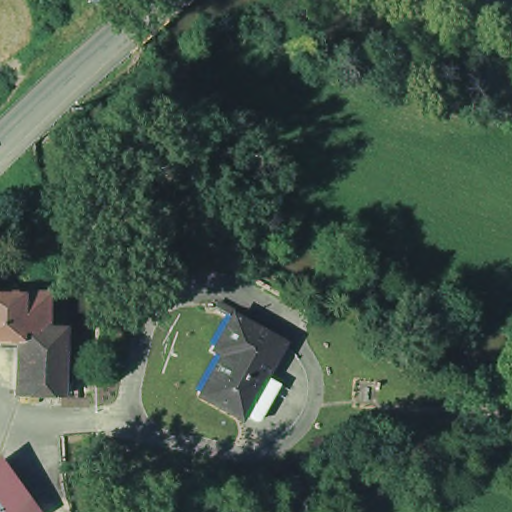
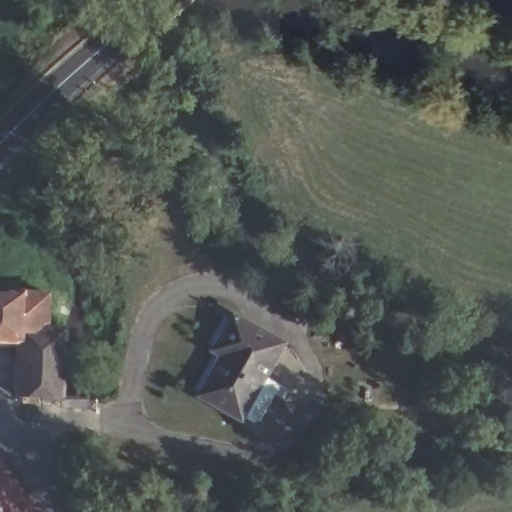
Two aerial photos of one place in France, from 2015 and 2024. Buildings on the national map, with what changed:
unchanged [(66,395),(22,394),(19,392),(18,339),(0,339),(0,287),(22,289),(22,292),(48,292),(47,325),(65,326),(66,395)]
unchanged [(284,347),(265,381),(261,379),(238,419),(201,399),(225,358),(215,351),(233,320),(284,347)]
unchanged [(24,493),(0,510),(0,461),(24,493)]

